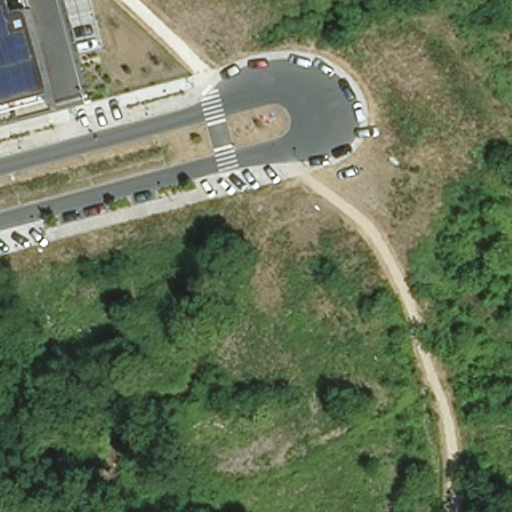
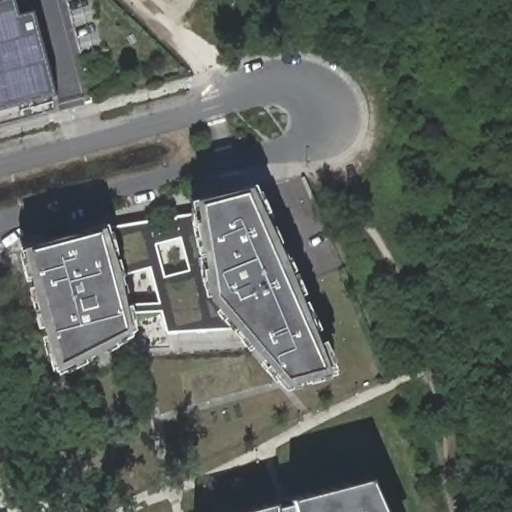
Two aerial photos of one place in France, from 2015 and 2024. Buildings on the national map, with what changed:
unchanged [(30,10),(35,14),(55,94),(61,108),(0,125),(0,0),(13,0),(16,12),(25,10),(30,10)]
new [(285,384),(235,328),(208,298),(197,213),(195,199),(250,184),(280,249),(328,370),(285,384)]
new [(104,229),(150,220),(153,235),(178,229),(175,217),(197,213),(208,298),(235,328),(167,332),(161,312),(127,313),(104,229)]
new [(61,363),(29,248),(104,229),(127,313),(130,326),(61,363)]
new [(376,475),(384,507),(387,512),(295,512),(292,500),(286,502),(287,512),(234,512),(376,475)]

